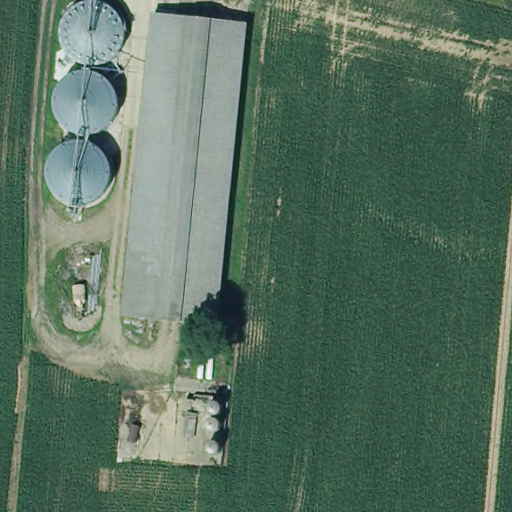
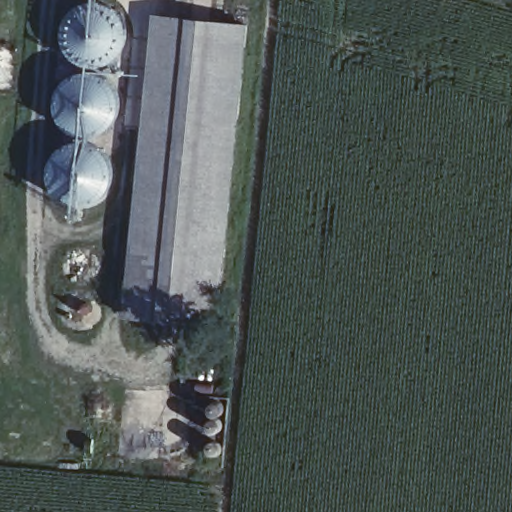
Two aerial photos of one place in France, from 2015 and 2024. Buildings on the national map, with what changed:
unchanged [(83,138),(81,137),(70,134),(62,122),(59,107),(61,92),(70,80),(78,75),(90,73),(90,66),(79,63),(72,55),(67,39),(66,26),(71,14),(82,4),(92,1),(103,1),(115,6),(125,18),(129,38),(124,50),(115,61),(98,66),(98,74),(110,79),(118,89),(122,101),(120,119),(110,130),(96,137),(96,143),(103,147),(113,161),(116,174),(113,187),(106,198),(93,208),(77,210),(65,205),(57,193),(53,176),(54,164),(63,148),(72,142),(82,141),(83,138)]
unchanged [(160,15),(251,24),(221,324),(130,315),(160,15)]

